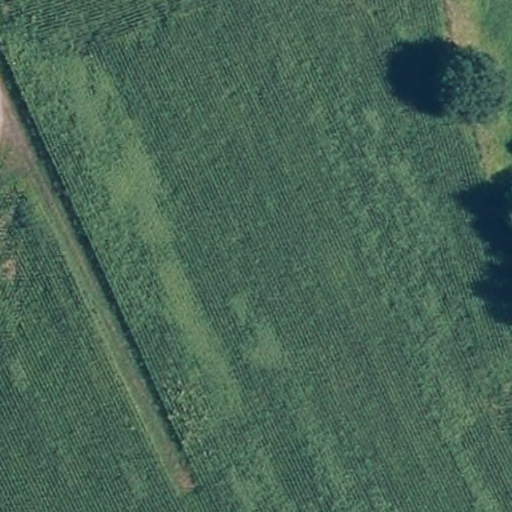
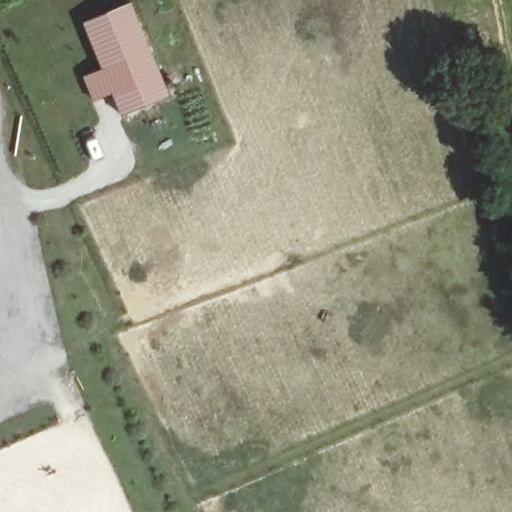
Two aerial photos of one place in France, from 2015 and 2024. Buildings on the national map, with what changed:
new [(100,67),(82,21),(131,1),(169,94),(121,114),(111,93),(93,101),(82,75),(100,67)]

